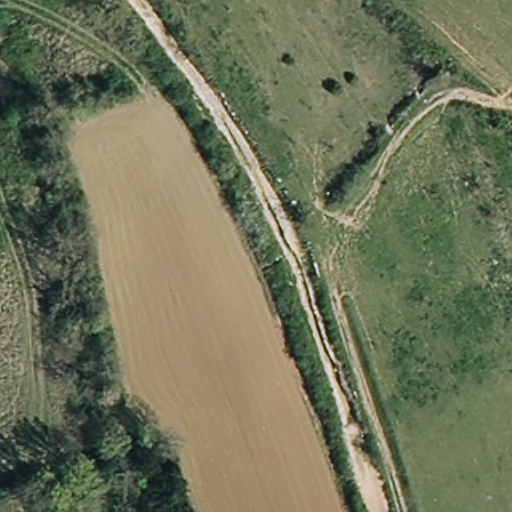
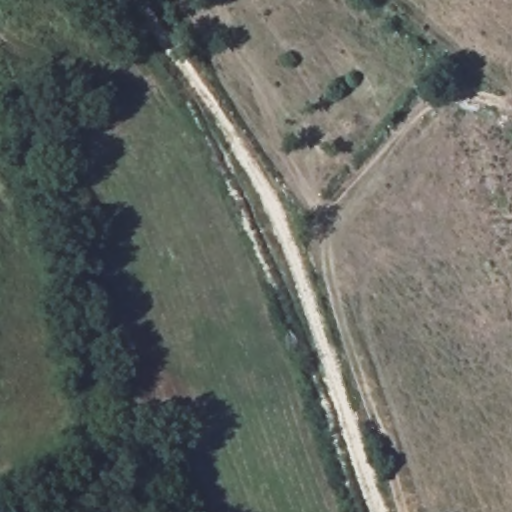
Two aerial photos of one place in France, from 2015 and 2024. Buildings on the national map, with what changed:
[]

